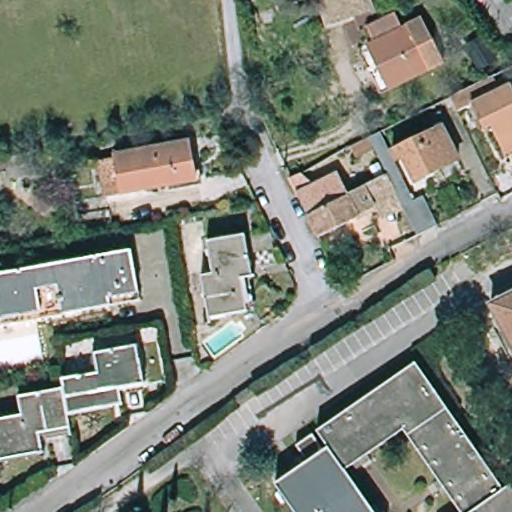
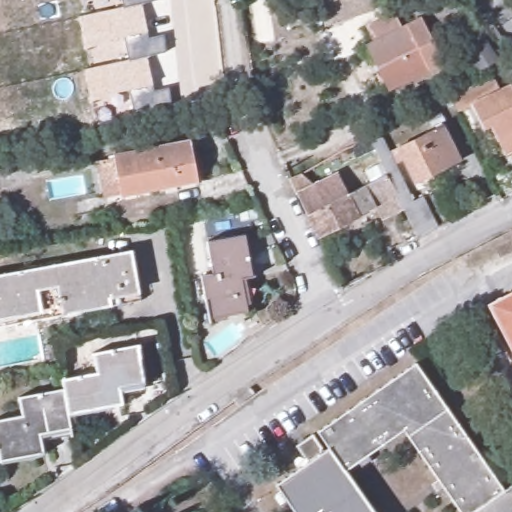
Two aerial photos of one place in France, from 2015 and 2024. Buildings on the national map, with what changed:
new [(91,97),(86,68),(128,60),(124,39),(86,47),(80,16),(123,7),(121,0),(157,0),(142,3),(149,37),(163,34),(167,52),(147,56),(153,85),(153,91),(170,87),(173,106),(134,113),(130,90),(91,97)]
unchanged [(314,1),(316,0),(373,0),(376,7),(350,16),(321,25),(314,1)]
unchanged [(435,71),(379,99),(356,51),(363,48),(356,33),(385,18),(392,34),(411,25),(435,71)]
unchanged [(507,159),(499,146),(492,131),(485,135),(472,111),(459,117),(451,103),(493,82),(502,99),(512,93),(512,156),(507,159)]
unchanged [(410,199),(376,134),(385,129),(395,148),(426,132),(419,120),(436,111),(442,123),(438,126),(455,158),(413,180),(420,195),(410,199)]
unchanged [(404,207),(387,175),(367,138),(376,134),(410,199),(420,195),(435,224),(442,237),(424,246),(404,207)]
unchanged [(99,160),(116,157),(115,153),(192,139),(200,182),(122,197),(121,194),(105,197),(99,160)]
new [(355,164),(349,152),(367,143),(373,155),(355,164)]
unchanged [(8,158),(36,153),(38,176),(11,179),(8,160),(8,158)]
unchanged [(295,193),(336,172),(348,195),(307,216),(295,193)]
unchanged [(307,216),(348,195),(361,188),(387,175),(404,207),(382,217),(375,205),(317,236),(307,216)]
unchanged [(250,272),(240,275),(245,306),(208,313),(202,280),(214,277),(209,247),(244,241),(250,272)]
unchanged [(138,303),(0,328),(0,274),(129,251),(138,303)]
unchanged [(489,303),(512,291),(512,347),(489,303)]
unchanged [(64,389),(62,378),(96,372),(93,352),(140,344),(146,382),(121,387),(124,403),(69,413),(64,389)]
unchanged [(503,491),(472,512),(460,512),(402,428),(343,469),(316,431),(414,362),(503,491)]
unchanged [(41,433),(44,452),(0,461),(0,419),(22,416),(18,397),(64,389),(69,413),(72,427),(41,433)]
unchanged [(294,445),(311,432),(366,512),(295,512),(275,483),(306,462),(294,445)]
unchanged [(481,512),(512,491),(512,512),(481,512)]
unchanged [(0,512),(0,501),(6,500),(7,510),(7,512),(0,512)]

